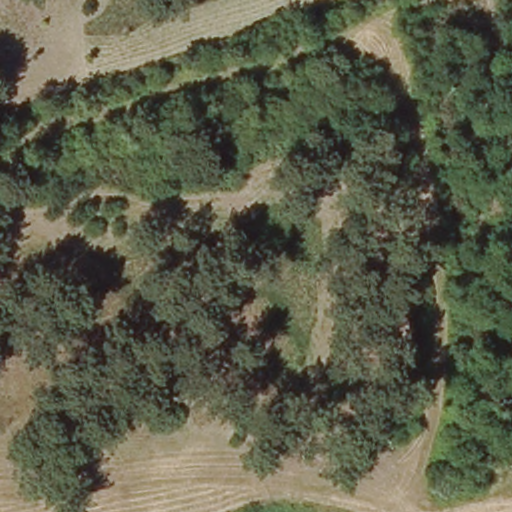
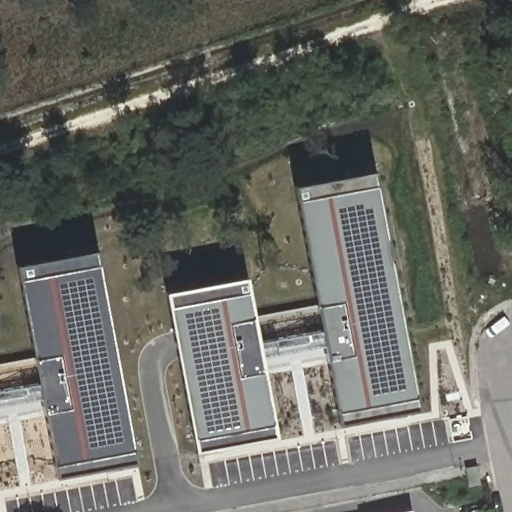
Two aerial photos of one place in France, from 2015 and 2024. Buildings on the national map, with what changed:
new [(247,276),(255,316),(317,305),(295,187),(375,173),(416,408),(338,422),(327,360),(265,372),(278,436),(196,451),(166,292),(247,276)]
new [(34,357),(19,266),(97,252),(137,462),(57,476),(46,413),(0,421),(0,363),(34,357)]

